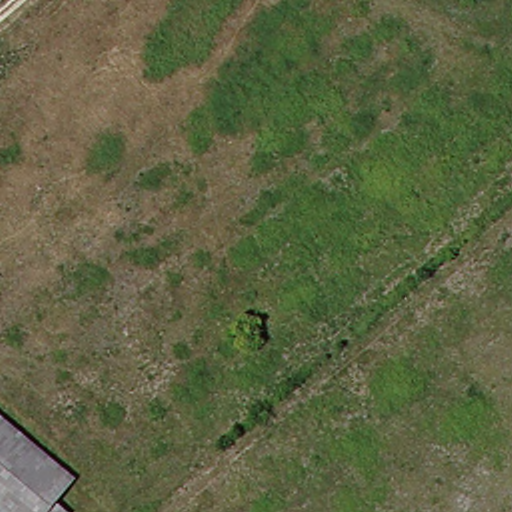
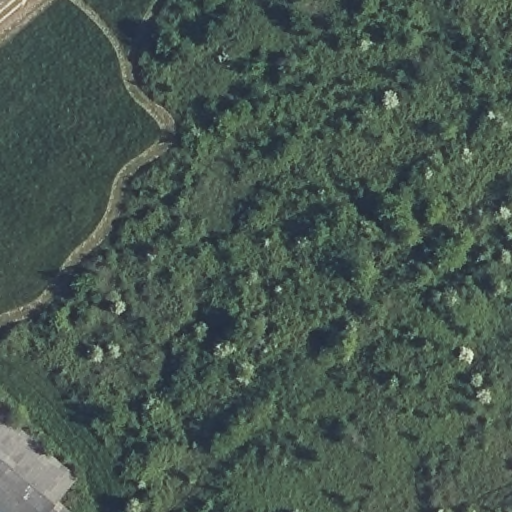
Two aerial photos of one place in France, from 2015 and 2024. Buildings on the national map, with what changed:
unchanged [(68,487),(46,510),(48,512),(0,512),(0,422),(68,487)]

